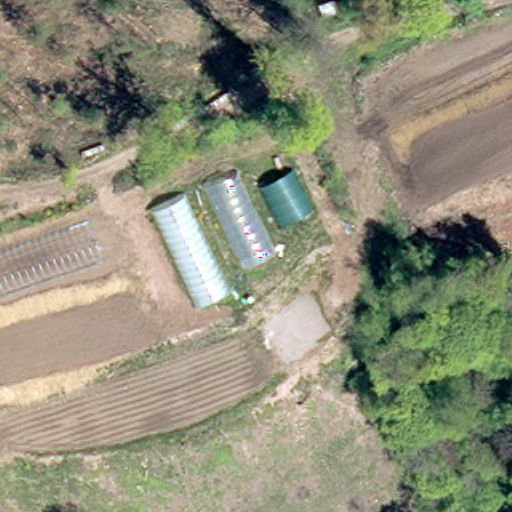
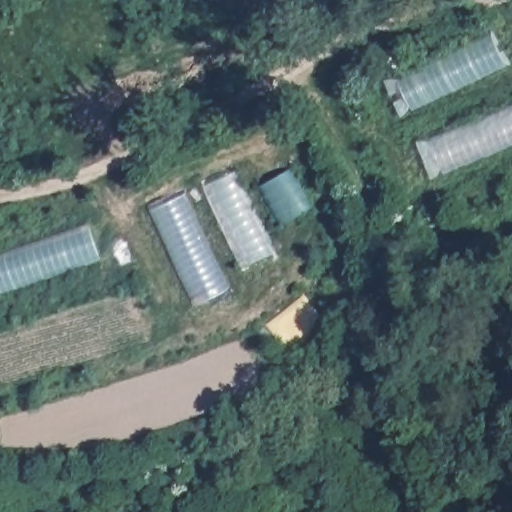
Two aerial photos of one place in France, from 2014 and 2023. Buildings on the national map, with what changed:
new [(492,35),(505,62),(410,106),(398,79),(492,35)]
new [(512,108),(512,141),(441,170),(430,139),(512,108)]
unchanged [(317,207),(282,226),(260,185),(296,166),(317,207)]
unchanged [(275,255),(245,269),(207,185),(236,170),(275,255)]
unchanged [(230,292),(197,307),(151,210),(184,194),(230,292)]
new [(101,255),(0,290),(0,256),(91,226),(101,255)]

